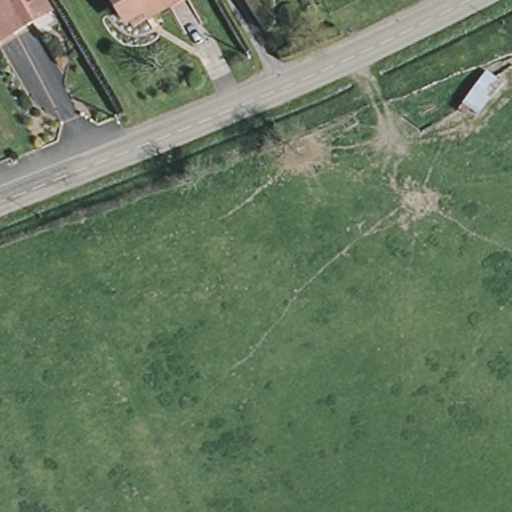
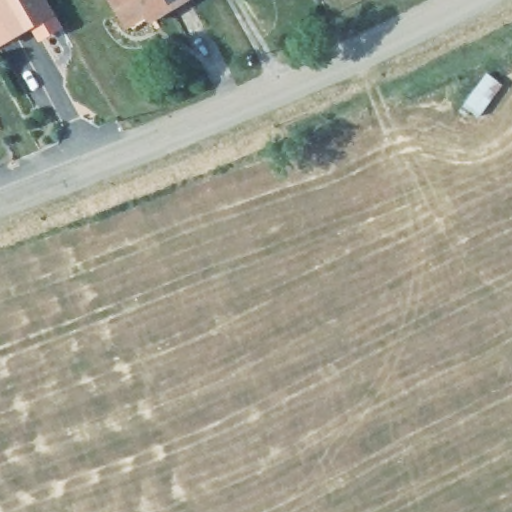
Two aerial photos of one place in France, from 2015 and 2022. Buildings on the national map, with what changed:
unchanged [(43,35),(31,24),(24,28),(13,35),(0,43),(0,0),(45,0),(52,12),(59,25),(43,35)]
unchanged [(181,1),(155,16),(146,1),(143,2),(121,16),(111,0),(182,0),(181,1)]
unchanged [(502,84),(481,116),(464,102),(486,72),(502,84)]

